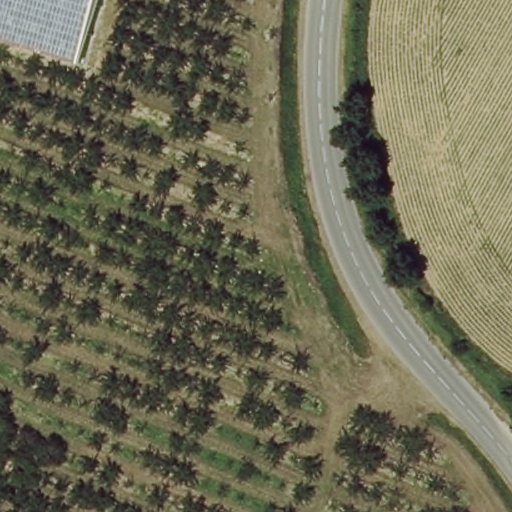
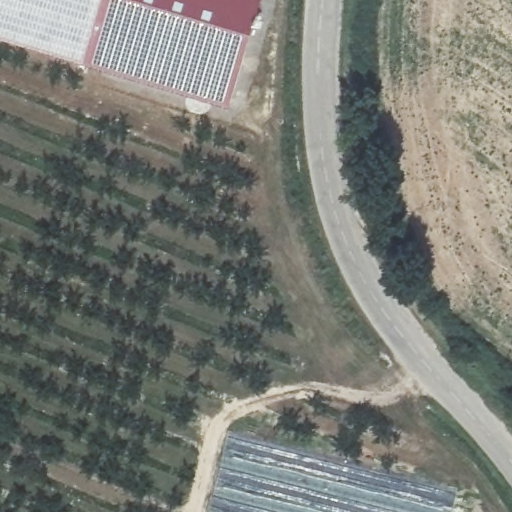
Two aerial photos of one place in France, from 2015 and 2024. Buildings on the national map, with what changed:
unchanged [(0,39),(0,0),(106,0),(86,63),(0,39)]
new [(265,0),(231,109),(86,63),(106,0),(265,0)]

